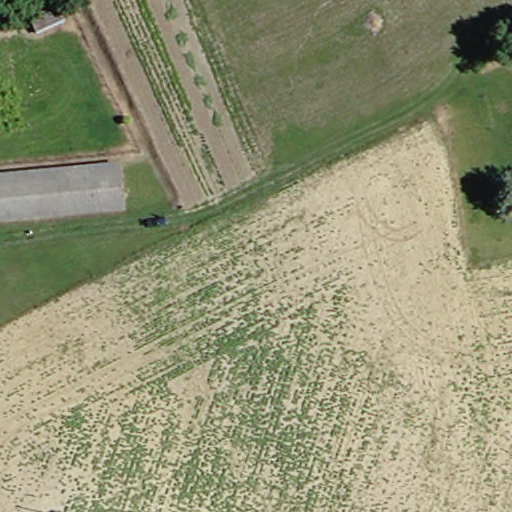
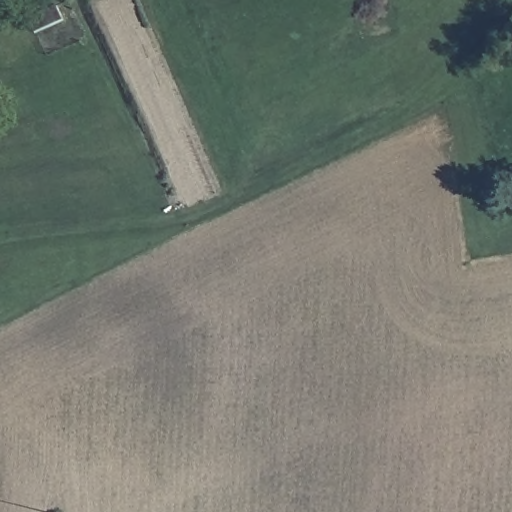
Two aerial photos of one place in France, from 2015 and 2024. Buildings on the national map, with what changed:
demolished [(129,210),(0,222),(0,176),(122,165),(129,210)]

